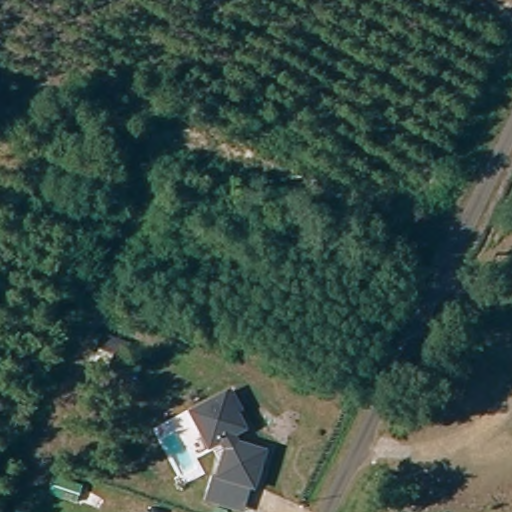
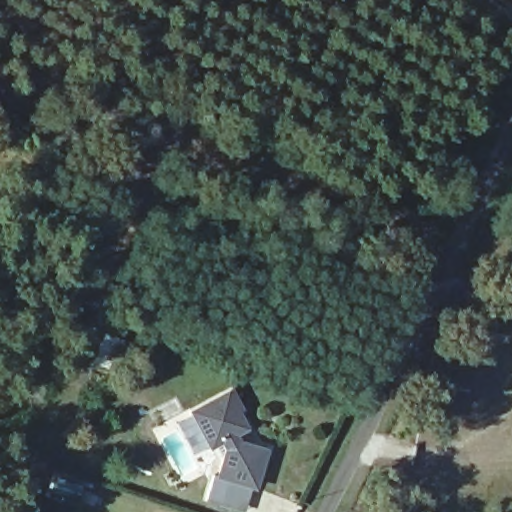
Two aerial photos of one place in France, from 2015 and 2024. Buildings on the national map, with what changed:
unchanged [(227,447),(223,440),(210,445),(192,410),(232,391),(241,407),(237,411),(243,427),(233,433),(238,442),(263,451),(256,483),(218,475),(227,447)]

